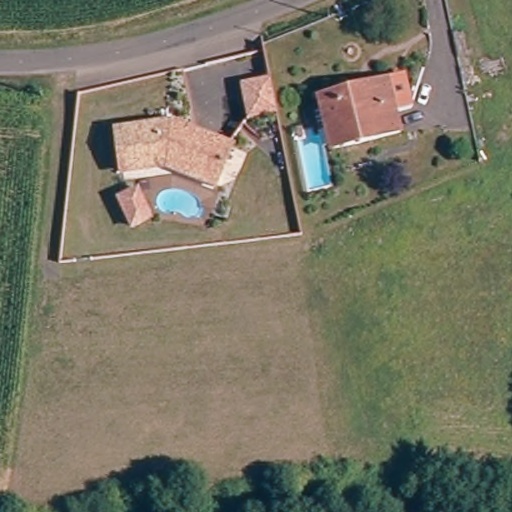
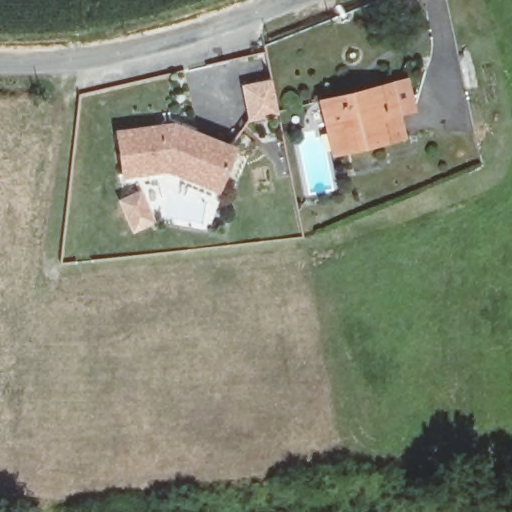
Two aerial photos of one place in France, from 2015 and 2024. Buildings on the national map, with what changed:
unchanged [(236,110),(233,78),(261,75),(265,108),(236,110)]
unchanged [(403,135),(332,151),(322,109),(320,99),(363,88),(390,82),(403,135)]
unchanged [(171,123),(230,142),(216,184),(179,172),(179,169),(167,164),(125,174),(116,135),(171,123)]
unchanged [(150,219),(132,228),(118,200),(136,191),(150,219)]

